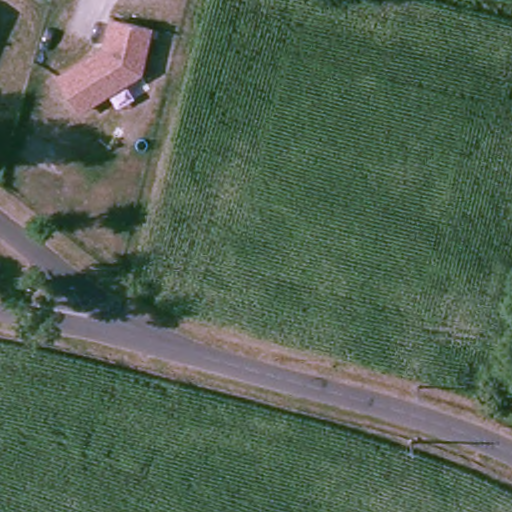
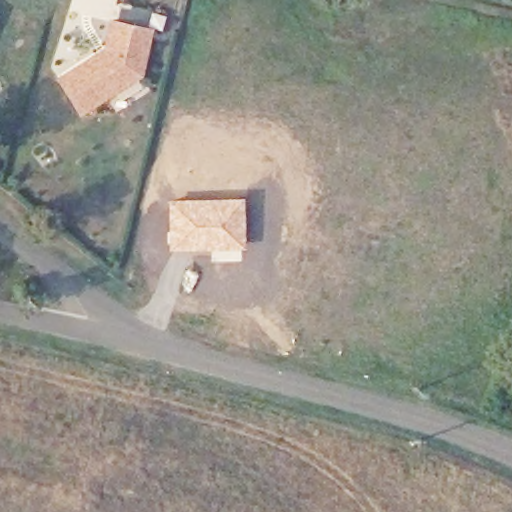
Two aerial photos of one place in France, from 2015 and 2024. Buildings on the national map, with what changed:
unchanged [(101,49),(109,19),(153,29),(142,76),(81,116),(56,77),(101,49)]
new [(244,196),(245,248),(167,249),(167,198),(244,196)]

